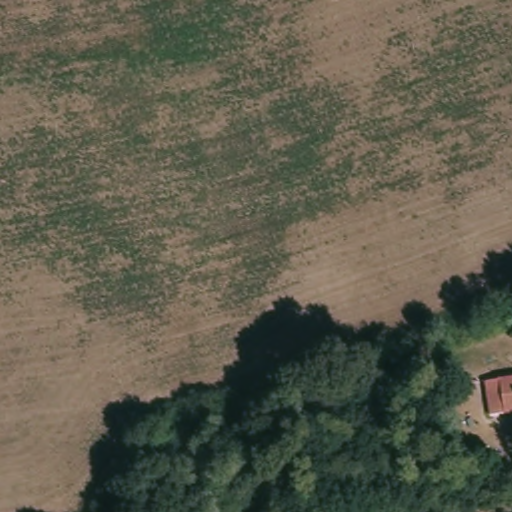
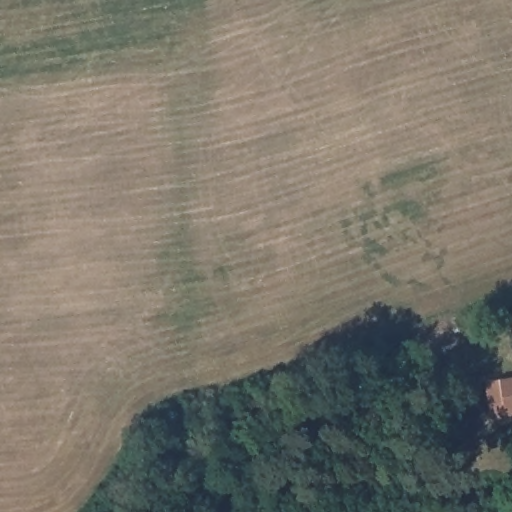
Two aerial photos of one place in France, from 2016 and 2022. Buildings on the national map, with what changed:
unchanged [(484,377),(512,375),(512,412),(488,415),(484,377)]

